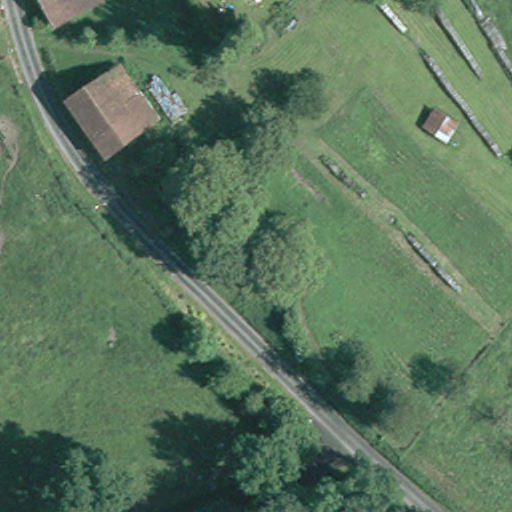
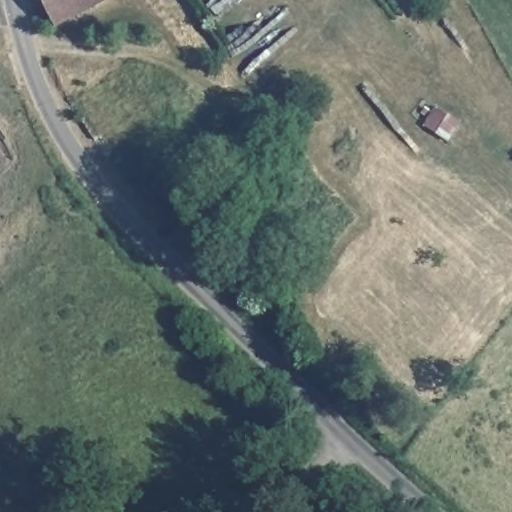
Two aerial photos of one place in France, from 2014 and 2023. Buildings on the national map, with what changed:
unchanged [(59,23),(48,0),(108,0),(59,23)]
demolished [(136,90),(155,118),(144,127),(109,156),(63,99),(102,71),(122,98),(136,90)]
unchanged [(425,127),(439,105),(467,117),(454,139),(425,127)]

